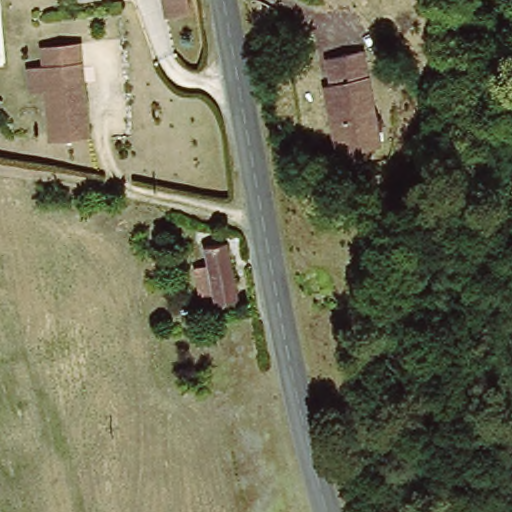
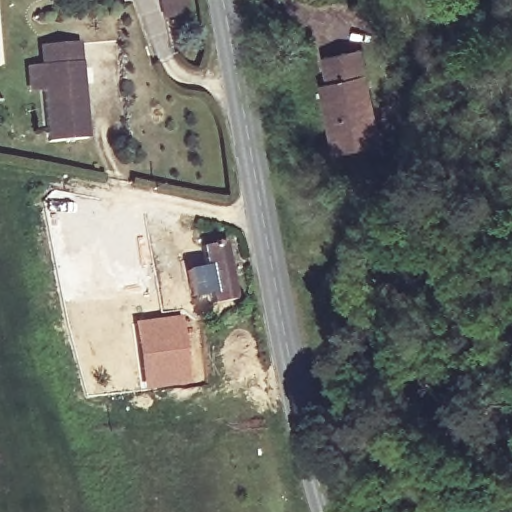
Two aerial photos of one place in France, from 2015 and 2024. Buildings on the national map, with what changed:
unchanged [(164,0),(187,0),(188,10),(167,14),(164,0)]
unchanged [(41,87),(40,60),(50,59),(50,42),(86,40),(88,58),(90,138),(54,139),(51,87),(41,87)]
unchanged [(335,93),(328,57),(365,51),(382,146),(339,154),(333,122),(327,94),(335,93)]
unchanged [(217,302),(213,283),(205,286),(201,267),(207,266),(203,244),(230,239),(241,297),(217,302)]
new [(183,313),(193,385),(140,392),(131,321),(183,313)]

